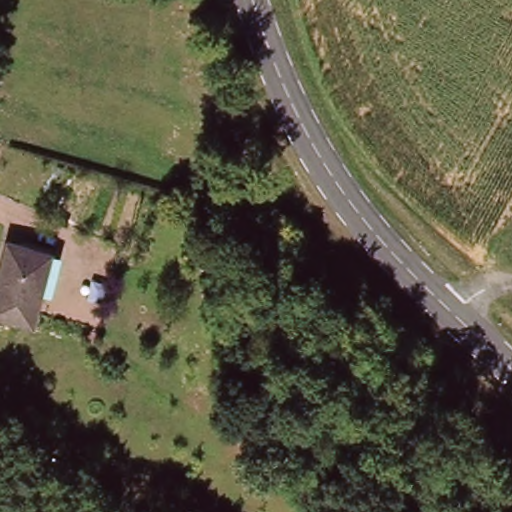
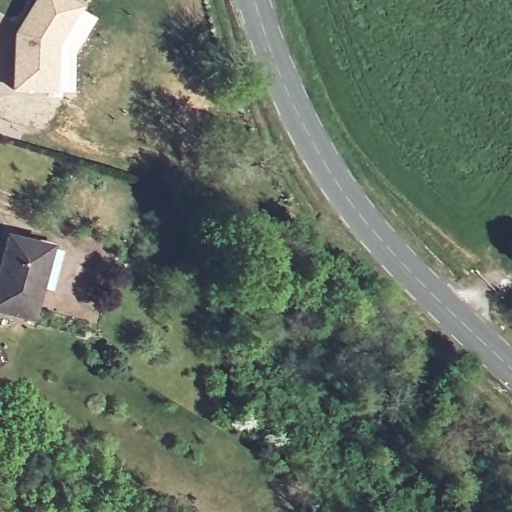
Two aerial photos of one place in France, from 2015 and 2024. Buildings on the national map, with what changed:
new [(73,92),(12,89),(13,34),(34,0),(62,0),(95,20),(73,49),(73,92)]
unchanged [(194,246),(177,248),(175,226),(191,224),(194,246)]
unchanged [(0,308),(0,264),(5,240),(46,251),(31,315),(0,308)]

